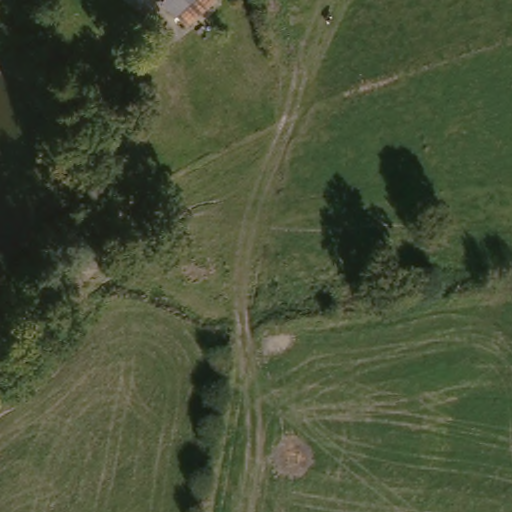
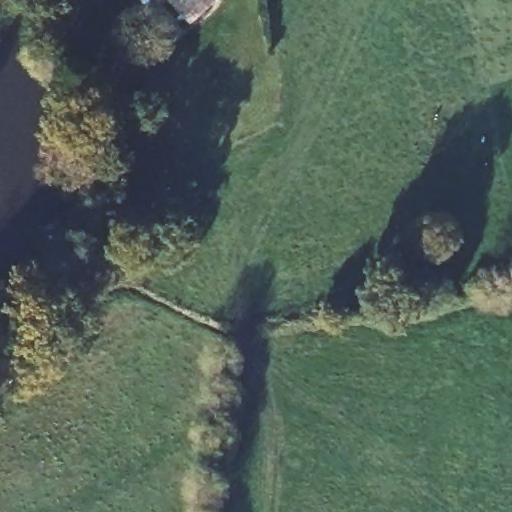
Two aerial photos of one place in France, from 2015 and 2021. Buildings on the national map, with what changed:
unchanged [(192,25),(181,12),(170,0),(219,0),(192,25)]

